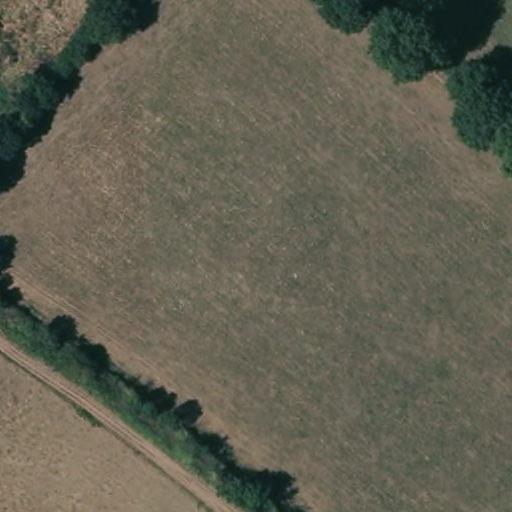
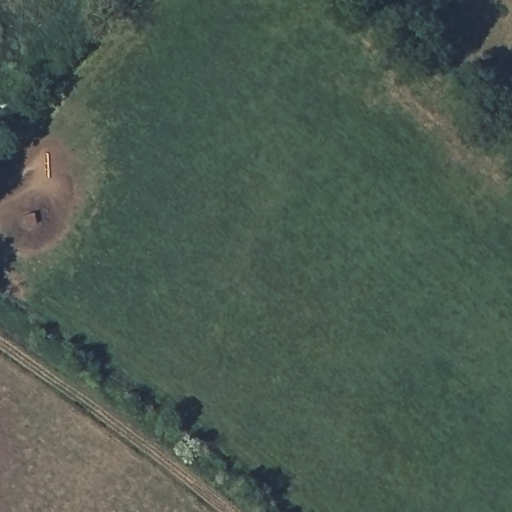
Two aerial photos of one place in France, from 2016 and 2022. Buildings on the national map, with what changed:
[]

